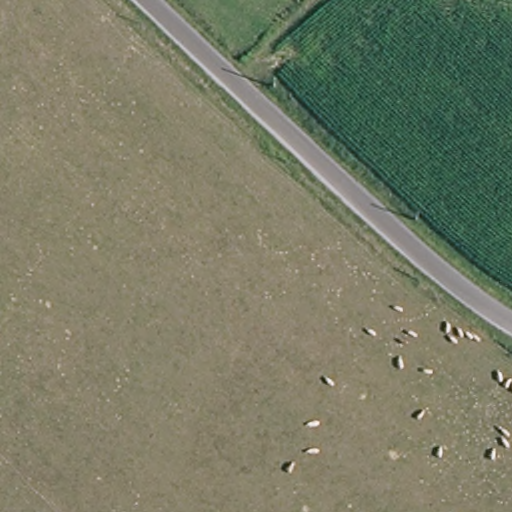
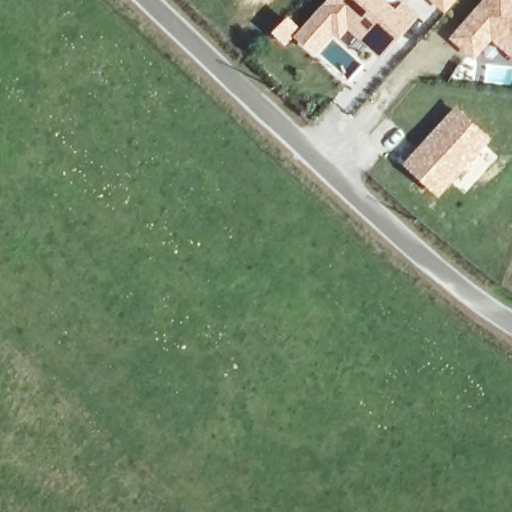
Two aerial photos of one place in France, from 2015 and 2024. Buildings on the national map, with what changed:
new [(302,27),(326,0),(389,0),(398,7),(403,0),(406,0),(422,14),(383,58),(349,29),(341,37),(334,31),(314,53),(295,36),(286,43),(273,32),(289,15),(302,27)]
new [(445,12),(430,0),(456,0),(445,12)]
new [(493,34),(476,53),(456,36),(488,0),(512,0),(512,51),(493,34)]
new [(456,104),(493,138),(466,172),(438,197),(401,162),(456,104)]

